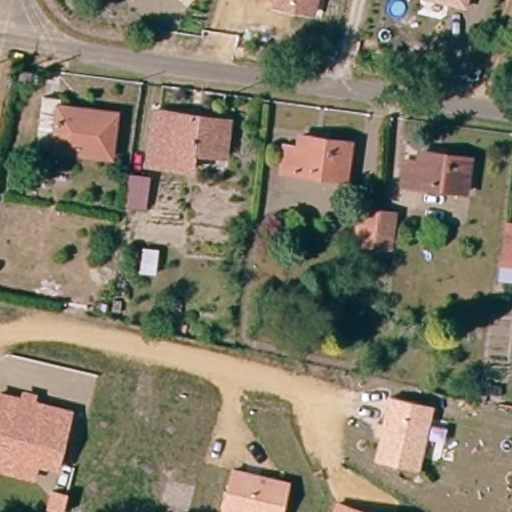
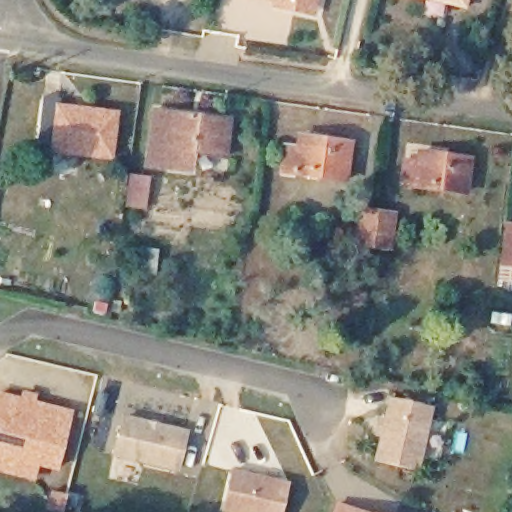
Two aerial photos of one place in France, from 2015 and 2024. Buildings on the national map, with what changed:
unchanged [(274,7),(276,0),(317,0),(313,16),(294,11),(274,7)]
unchanged [(461,9),(426,0),(464,0),(461,9)]
unchanged [(59,99),(59,108),(115,116),(109,161),(38,149),(45,98),(59,99)]
unchanged [(186,168),(145,161),(154,107),(231,119),(225,155),(188,150),(186,168)]
unchanged [(356,149),(353,184),(289,175),(294,148),(305,150),(307,142),(356,149)]
unchanged [(469,157),(465,192),(401,184),(404,157),(418,158),(418,150),(469,157)]
unchanged [(122,168),(144,170),(141,200),(118,197),(122,168)]
unchanged [(389,214),(385,246),(374,244),(361,242),(366,210),(379,212),(389,214)]
unchanged [(512,231),(512,275),(503,274),(507,230),(512,231)]
unchanged [(0,473),(0,391),(20,395),(21,389),(38,393),(36,401),(73,410),(56,471),(36,467),(34,483),(0,473)]
unchanged [(375,459),(379,440),(372,437),(376,421),(383,423),(388,395),(436,405),(419,471),(375,459)]
new [(179,471),(113,455),(123,413),(188,429),(179,471)]
unchanged [(283,512),(223,512),(220,511),(230,469),(289,482),(283,512)]
unchanged [(363,512),(333,512),(336,502),(363,512)]

